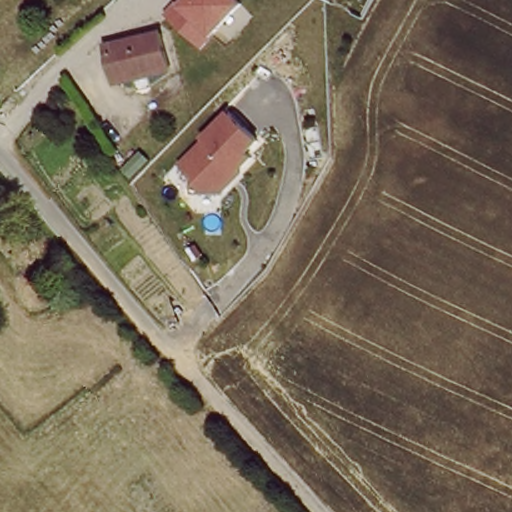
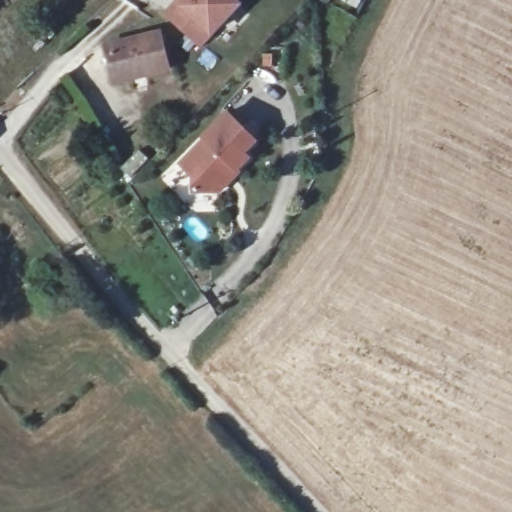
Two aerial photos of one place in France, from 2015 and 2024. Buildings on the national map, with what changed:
unchanged [(165,0),(179,0),(171,7),(165,0)]
unchanged [(185,3),(188,0),(239,0),(241,2),(202,43),(170,13),(181,0),(185,3)]
unchanged [(169,70),(113,79),(105,45),(162,38),(169,70)]
unchanged [(248,153),(253,158),(240,170),(243,172),(220,195),(190,194),(190,177),(176,164),(231,111),(260,139),(248,153)]

